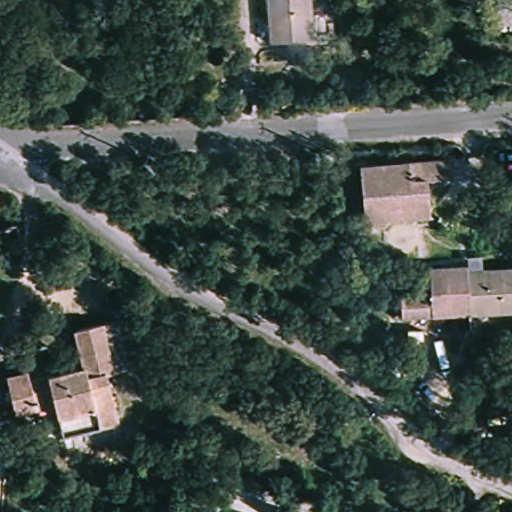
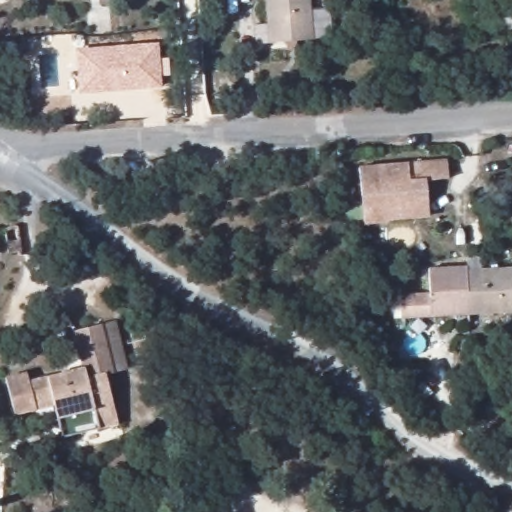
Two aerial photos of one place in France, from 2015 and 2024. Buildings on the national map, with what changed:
unchanged [(307,37),(263,39),(261,0),(305,0),(307,37)]
new [(162,87),(78,92),(75,49),(158,42),(162,87)]
unchanged [(397,226),(363,229),(351,161),(448,156),(453,183),(430,185),(432,207),(435,224),(397,226)]
unchanged [(463,268),(512,264),(512,314),(465,316),(463,268)]
unchanged [(403,296),(432,293),(432,270),(463,268),(465,316),(403,322),(403,296)]
unchanged [(55,432),(51,415),(45,395),(27,400),(28,410),(4,415),(0,397),(0,374),(19,369),(21,380),(81,365),(75,334),(100,326),(113,376),(102,379),(109,409),(111,419),(55,432)]

